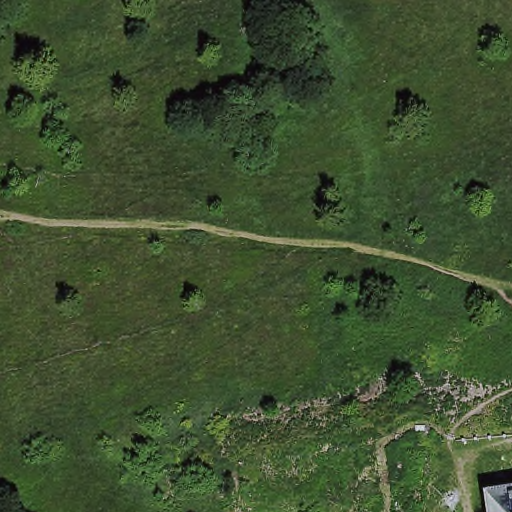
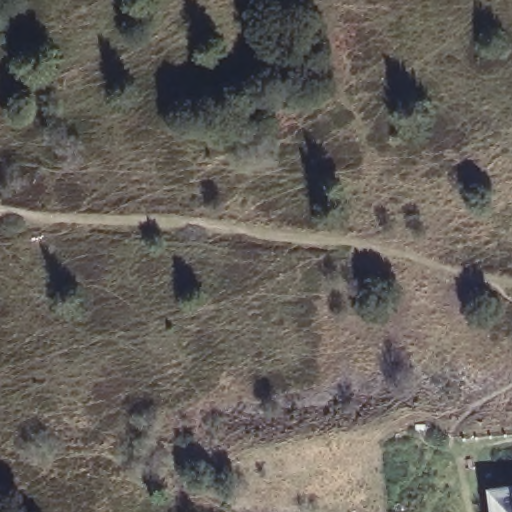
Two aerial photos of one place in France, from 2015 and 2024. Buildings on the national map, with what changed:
unchanged [(512,491),(512,512),(484,512),(482,495),(512,491)]

